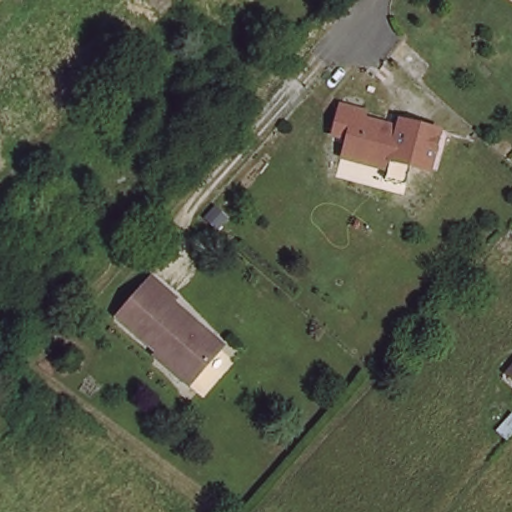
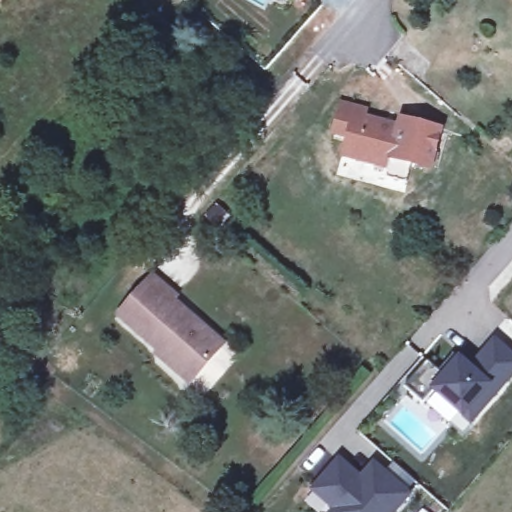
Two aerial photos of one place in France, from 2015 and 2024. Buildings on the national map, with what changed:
unchanged [(344,145),(349,127),(335,123),(342,95),(366,101),(364,106),(364,108),(378,112),(377,116),(399,122),(402,110),(441,120),(430,159),(412,154),(407,174),(386,168),(389,157),(371,152),(344,145)]
unchanged [(177,297),(174,301),(200,323),(198,327),(221,347),(191,383),(157,354),(159,351),(119,315),(153,276),(177,297)]
new [(512,379),(471,425),(463,418),(432,392),(423,403),(405,387),(429,361),(442,373),(459,355),(469,365),(494,337),(512,353),(512,379)]
demolished [(512,367),(512,375),(508,371),(512,367)]
new [(373,465),(380,471),(408,495),(393,512),(331,512),(334,509),(312,490),(338,460),(359,480),(373,465)]

